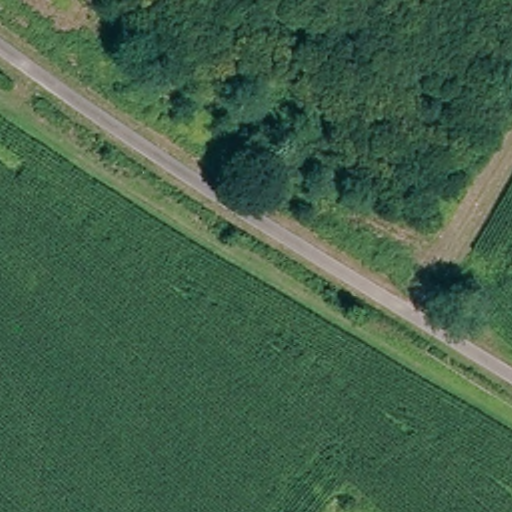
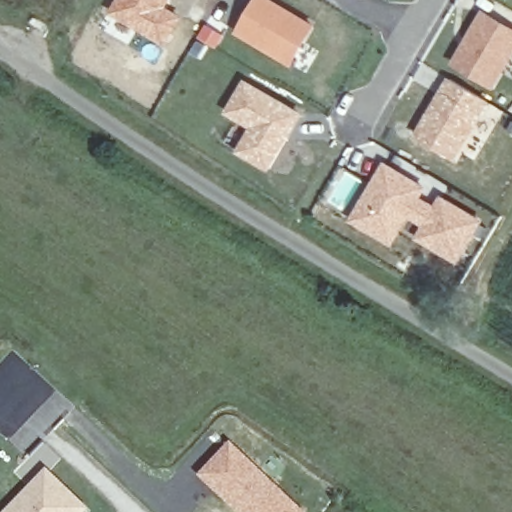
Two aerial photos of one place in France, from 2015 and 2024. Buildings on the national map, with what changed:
new [(116,0),(171,0),(168,6),(184,16),(166,47),(108,13),(116,0)]
new [(253,0),(273,0),(315,24),(289,67),(234,34),(253,0)]
new [(512,27),(512,57),(493,89),(449,64),(481,8),(512,27)]
new [(446,77),(490,102),(455,162),(412,136),(446,77)]
new [(243,79),(304,113),(269,172),(235,151),(249,128),(225,114),(243,79)]
new [(383,160),(428,186),(423,196),(435,203),(419,228),(409,223),(393,247),(349,221),(383,160)]
new [(419,228),(435,203),(440,194),(484,219),(459,264),(414,236),(419,228)]
new [(29,390),(36,396),(7,426),(12,432),(54,390),(70,405),(22,452),(0,431),(0,421),(29,390)]
new [(305,512),(236,512),(197,474),(230,440),(305,512)]
new [(40,460),(27,473),(24,471),(22,473),(19,471),(44,442),(61,457),(50,469),(91,509),(88,512),(4,512),(46,466),(40,460)]

